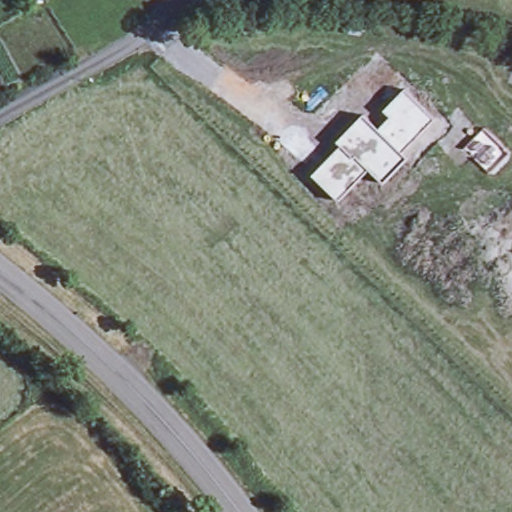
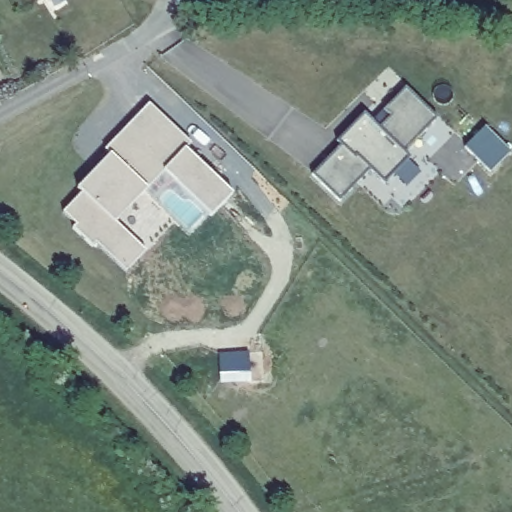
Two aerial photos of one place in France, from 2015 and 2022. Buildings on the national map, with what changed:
unchanged [(402,154),(407,159),(384,185),(369,171),(339,201),(313,176),(342,146),(339,142),(365,115),(379,129),(392,118),(384,110),(405,91),(433,118),(402,154)]
new [(77,188),(110,154),(105,149),(127,125),(149,103),(172,124),(191,143),(185,149),(232,194),(211,216),(164,171),(115,222),(145,250),(125,272),(95,243),(92,246),(72,227),(76,224),(63,211),(82,192),(77,188)]
new [(485,126),(510,151),(490,172),(465,146),(485,126)]

